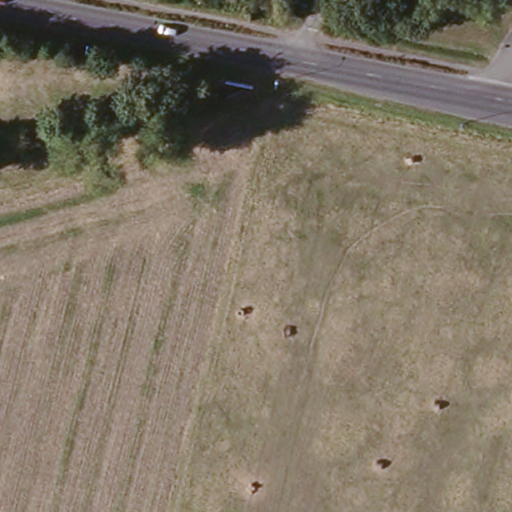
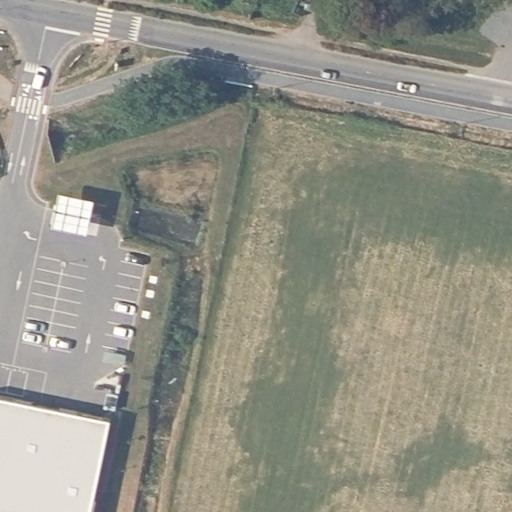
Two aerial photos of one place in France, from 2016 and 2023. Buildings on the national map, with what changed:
new [(93,512),(0,512),(0,398),(109,419),(93,512)]

